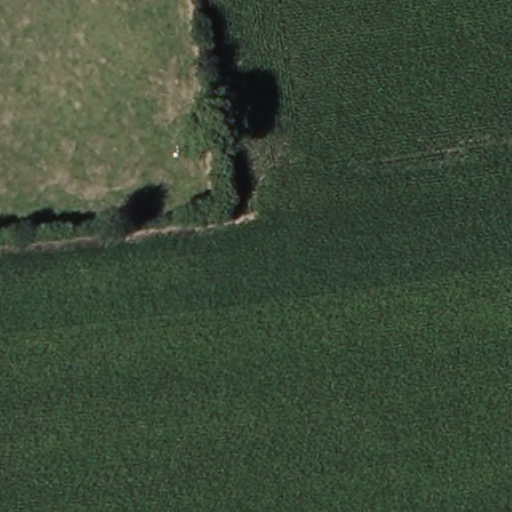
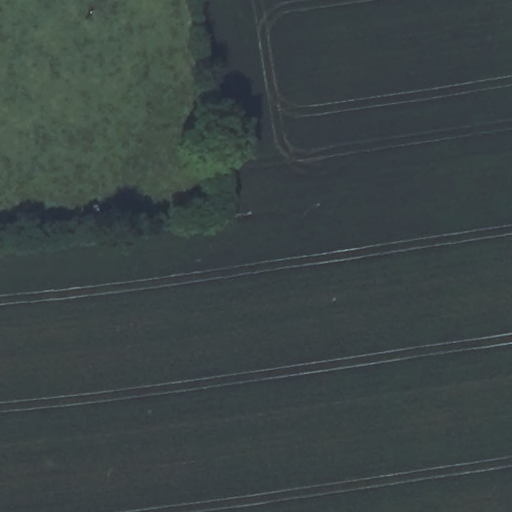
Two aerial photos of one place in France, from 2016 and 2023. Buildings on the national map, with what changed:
[]

